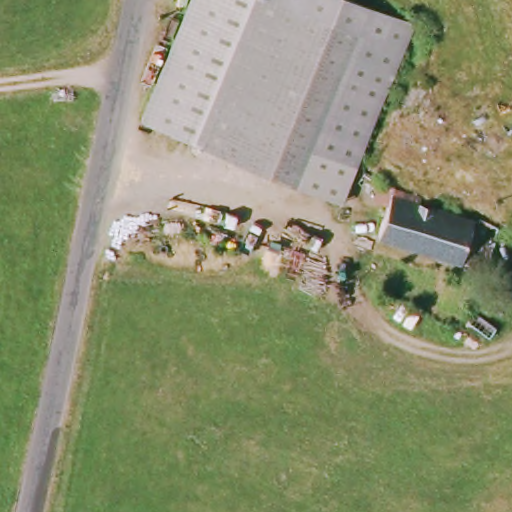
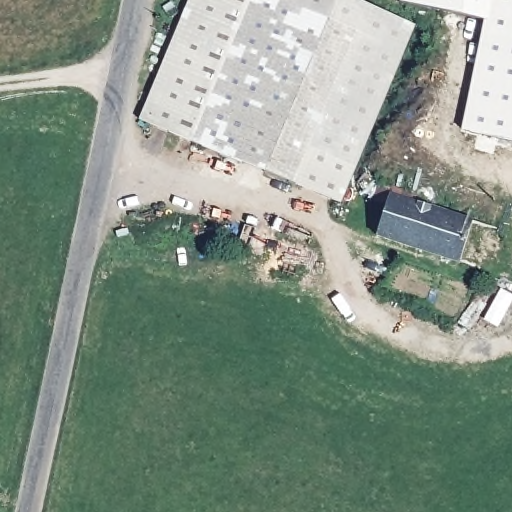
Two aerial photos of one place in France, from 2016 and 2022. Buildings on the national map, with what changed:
unchanged [(196,142),(142,119),(194,0),(356,0),(414,24),(342,200),(196,142)]
new [(512,0),(512,142),(462,131),(485,21),(397,3),(398,0),(512,0)]
unchanged [(463,260),(379,235),(388,203),(375,200),(360,183),(366,172),(382,182),(395,187),(393,193),(475,219),(463,260)]

